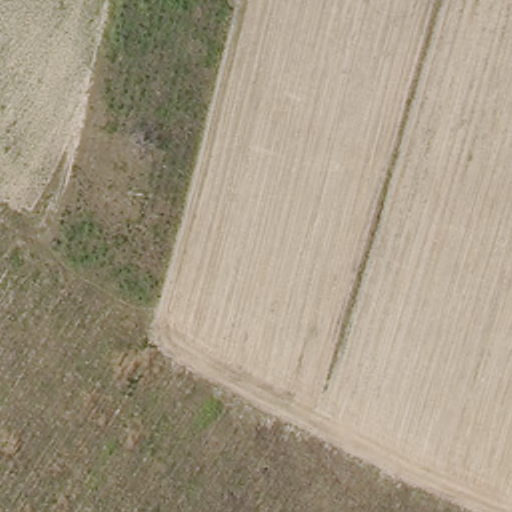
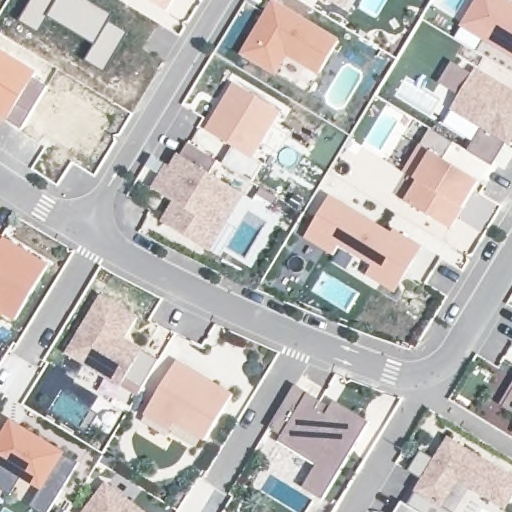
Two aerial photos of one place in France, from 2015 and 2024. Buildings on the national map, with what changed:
new [(32,0),(91,0),(113,14),(110,19),(131,31),(105,74),(83,61),(93,45),(50,19),(40,34),(19,20),(32,0)]
new [(166,11),(148,0),(173,0),(166,11)]
new [(342,40),(318,75),(289,57),(275,76),(240,55),(273,0),(274,0),(342,40)]
new [(346,10),(330,0),(352,0),(346,10)]
new [(477,0),(504,0),(512,5),(512,56),(462,25),(477,0)]
new [(33,78),(47,86),(21,131),(0,118),(0,49),(37,70),(33,78)]
new [(482,129),(450,109),(459,95),(439,82),(452,61),(472,74),(477,67),(512,89),(512,142),(510,145),(505,143),(492,165),(468,150),(482,129)]
new [(282,112),(255,159),(263,164),(252,181),(224,163),(234,146),(230,144),(207,130),(234,83),(282,112)]
new [(450,229),(404,200),(415,178),(402,172),(430,129),(453,142),(441,157),(481,182),(450,229)]
new [(170,166),(173,169),(189,143),(218,161),(210,174),(242,193),(208,250),(165,223),(177,203),(155,190),(163,177),(170,166)]
new [(332,196),(392,233),(394,230),(422,246),(395,291),(367,275),(373,265),(340,245),(334,255),(306,238),(332,196)]
new [(15,321),(0,311),(0,235),(50,265),(15,321)]
new [(100,295),(140,318),(126,338),(145,350),(121,388),(65,353),(100,295)]
new [(177,361),(235,395),(205,442),(175,425),(171,432),(145,416),(177,361)]
new [(303,488),(317,465),(278,441),(282,435),(270,428),(295,385),(332,406),(335,401),(370,423),(323,500),(303,488)]
new [(500,405),(512,385),(512,411),(500,405)]
new [(41,491),(22,480),(12,495),(0,488),(0,429),(3,431),(11,418),(67,453),(65,456),(80,463),(51,512),(39,512),(30,507),(41,491)]
new [(421,450),(435,458),(442,447),(448,437),(512,476),(512,498),(505,508),(458,480),(443,506),(452,512),(419,512),(407,505),(422,480),(408,471),(421,450)]
new [(147,512),(82,512),(107,481),(147,512)]
new [(407,505),(419,512),(395,512),(402,501),(407,505)]

